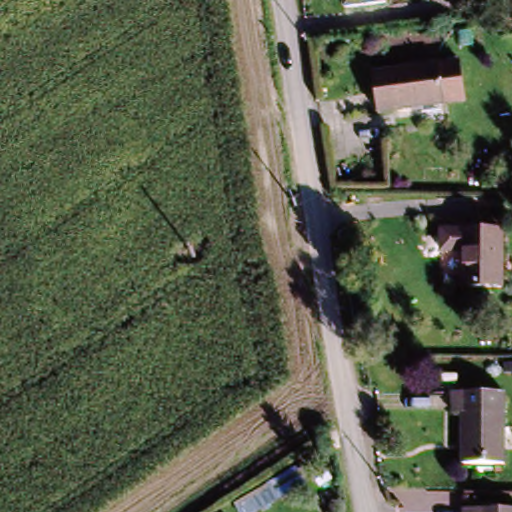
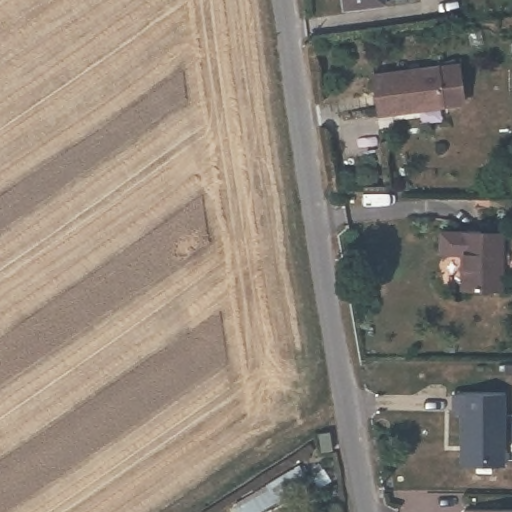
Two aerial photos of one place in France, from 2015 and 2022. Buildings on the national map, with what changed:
unchanged [(386,3),(344,9),(343,0),(385,0),(386,3)]
unchanged [(379,114),(374,75),(439,66),(444,101),(444,105),(412,110),(379,114)]
unchanged [(497,289),(457,288),(458,232),(497,232),(497,289)]
unchanged [(498,467),(456,466),(457,415),(449,415),(449,394),(499,394),(498,467)]
unchanged [(329,431),(333,450),(321,452),(318,433),(329,431)]

